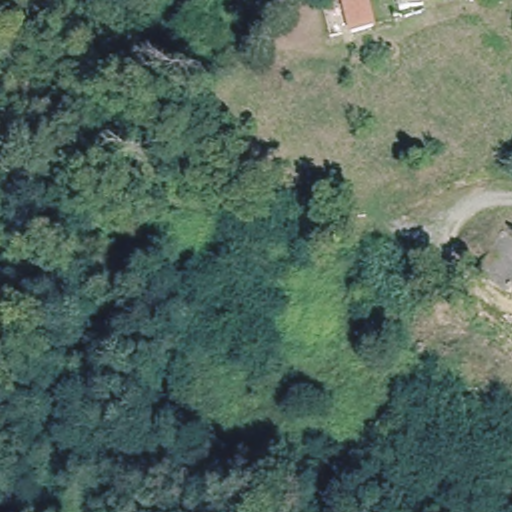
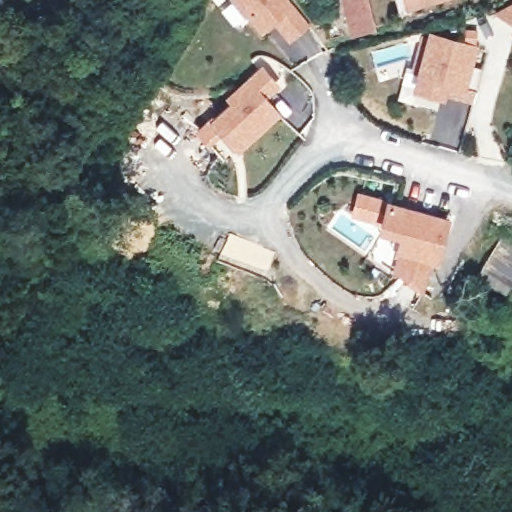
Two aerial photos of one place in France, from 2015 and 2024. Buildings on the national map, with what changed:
new [(290,39),(272,17),(262,26),(240,0),(286,0),(288,3),(290,1),(291,3),(308,24),(290,39)]
unchanged [(373,22),(352,27),(346,0),(368,0),(373,22)]
unchanged [(425,6),(401,11),(399,4),(398,0),(423,0),(425,6)]
new [(512,2),(512,24),(493,13),(512,2)]
new [(450,86),(446,99),(412,87),(429,30),(480,45),(466,90),(450,86)]
new [(237,99),(233,94),(265,65),(279,82),(266,94),(280,110),(226,156),(202,129),(237,99)]
new [(397,255),(403,235),(382,229),(389,205),(447,221),(436,259),(429,257),(420,290),(402,277),(395,273),(400,255),(397,255)]
new [(478,274),(507,230),(512,233),(512,283),(512,282),(507,291),(478,274)]

